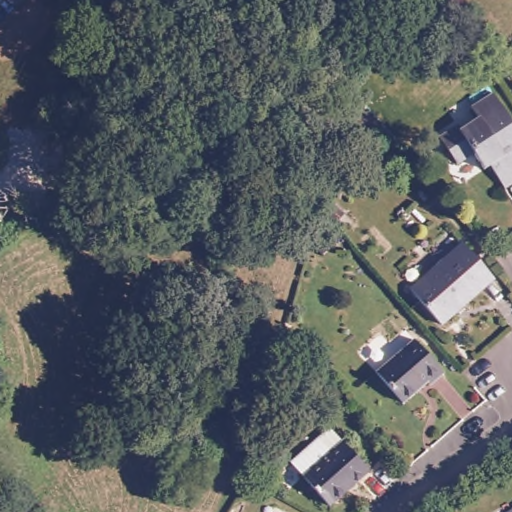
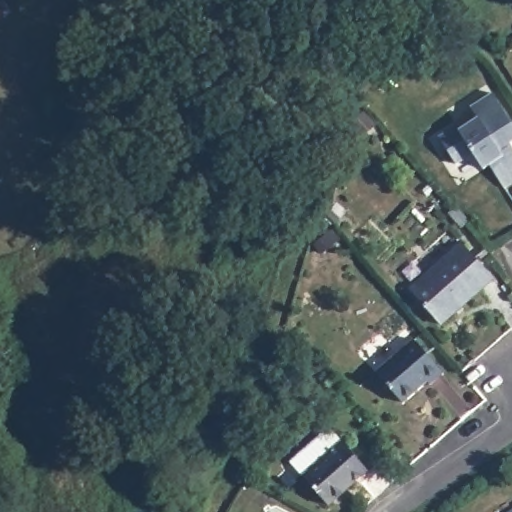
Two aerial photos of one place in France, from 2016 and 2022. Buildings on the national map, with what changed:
unchanged [(512,139),(508,142),(512,148),(512,182),(504,188),(487,163),(482,166),(472,149),(455,160),(436,130),(452,119),(456,123),(474,111),(467,100),(488,86),(512,124),(512,139)]
unchanged [(378,127),(365,137),(356,126),(369,116),(378,127)]
unchanged [(493,276),(438,322),(409,286),(464,242),(493,276)]
unchanged [(440,366),(426,377),(423,373),(399,395),(374,363),(413,332),(440,366)]
unchanged [(330,512),(294,467),(321,443),(332,435),(344,448),(369,476),(330,512)]
unchanged [(512,512),(509,512),(512,510),(512,512)]

